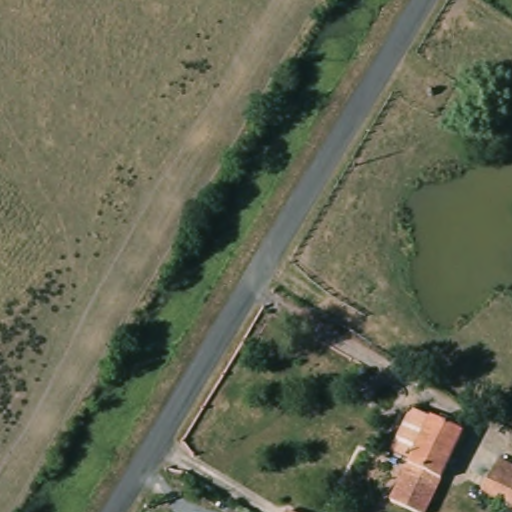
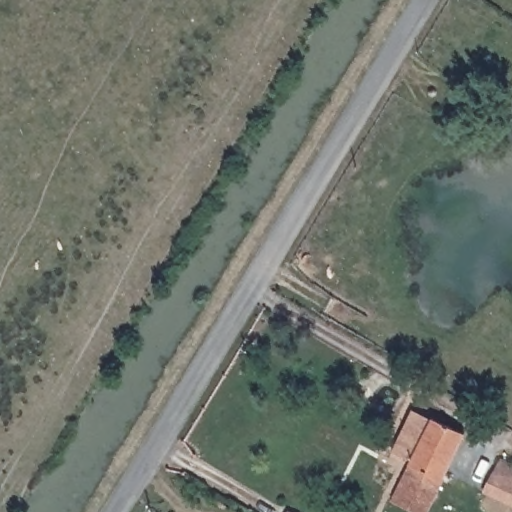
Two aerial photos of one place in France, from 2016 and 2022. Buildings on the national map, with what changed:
unchanged [(394,454),(415,412),(434,421),(414,463),(394,454)]
unchanged [(433,512),(415,512),(394,503),(414,463),(434,421),(469,438),(433,512)]
unchanged [(499,463),(512,469),(512,508),(483,494),(499,463)]

